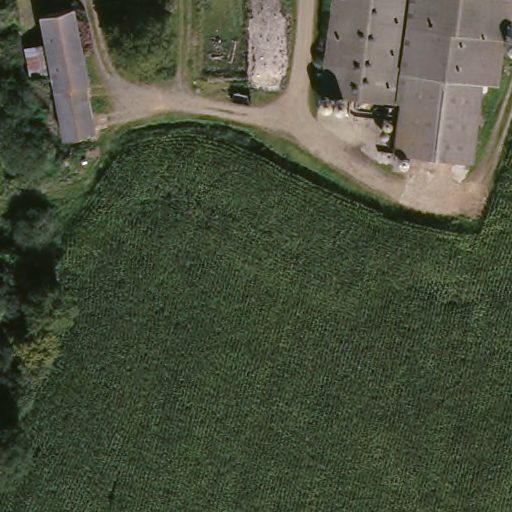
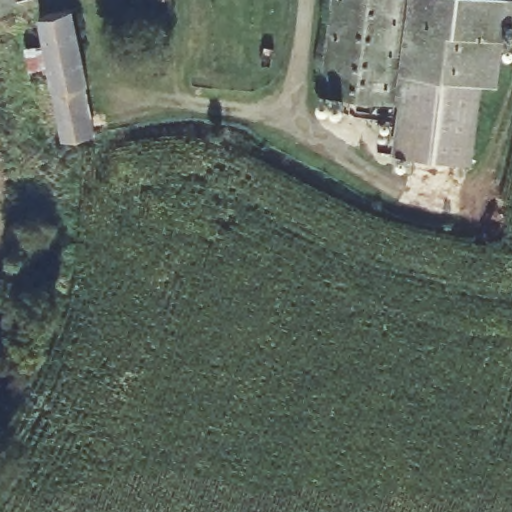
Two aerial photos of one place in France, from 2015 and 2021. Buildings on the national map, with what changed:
unchanged [(395,151),(405,77),(395,76),(393,86),(362,108),(325,102),(335,0),(512,0),(512,13),(509,13),(501,84),(486,81),(477,162),(395,151)]
unchanged [(80,5),(94,78),(88,79),(97,130),(76,135),(64,67),(54,11),(80,5)]
unchanged [(32,16),(54,11),(64,67),(41,73),(32,16)]

